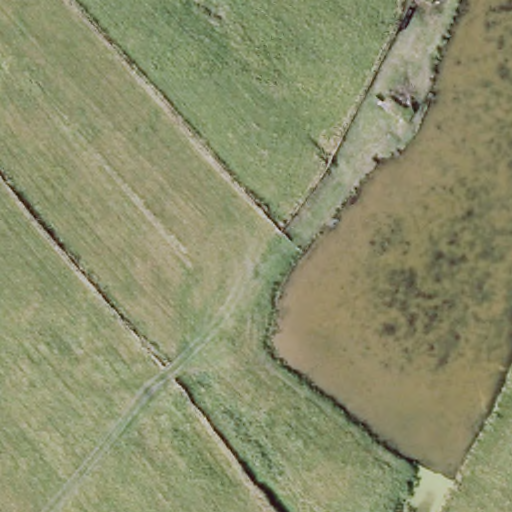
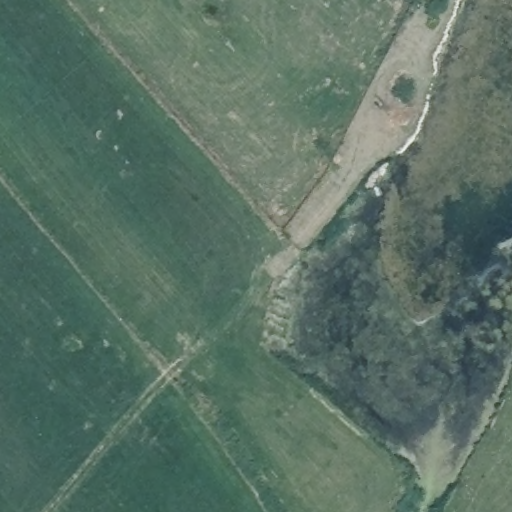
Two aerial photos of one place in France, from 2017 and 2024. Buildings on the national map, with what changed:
unchanged [(437,28),(442,18),(457,25),(452,39),(437,28)]

